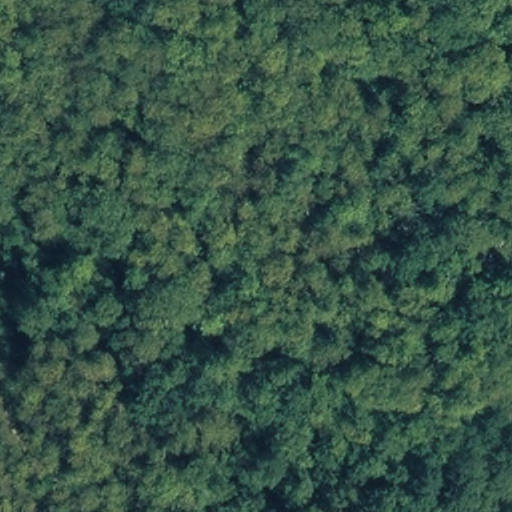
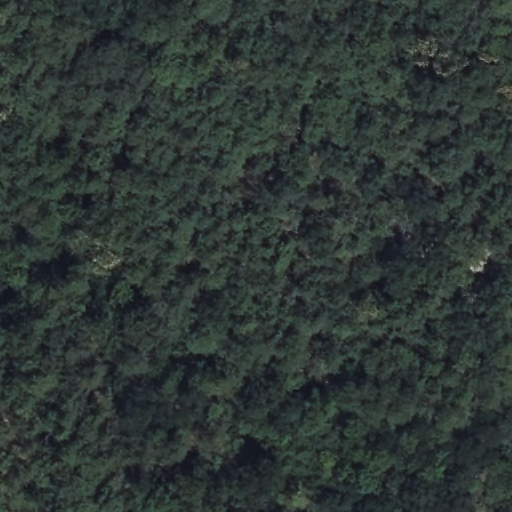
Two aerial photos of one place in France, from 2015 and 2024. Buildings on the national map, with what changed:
[]

